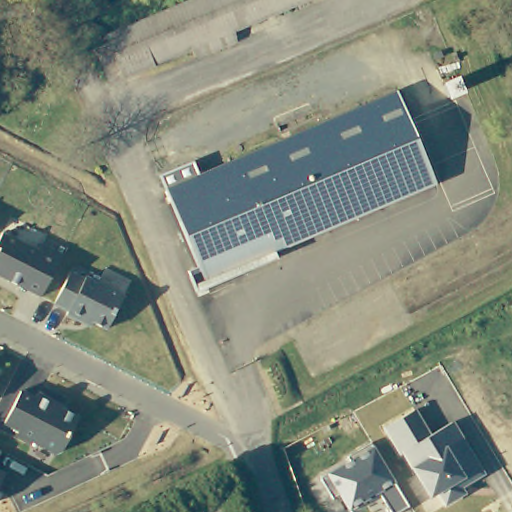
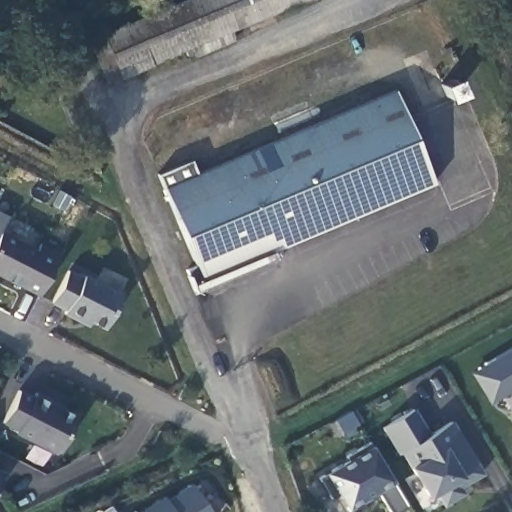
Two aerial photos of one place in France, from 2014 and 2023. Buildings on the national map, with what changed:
unchanged [(230,44),(192,60),(189,52),(104,87),(90,52),(102,47),(99,39),(193,0),(315,0),(227,36),(230,44)]
unchanged [(202,281),(164,189),(397,92),(436,183),(202,281)]
unchanged [(5,275),(0,273),(0,234),(1,232),(38,250),(42,244),(61,253),(40,295),(4,277),(5,275)]
unchanged [(69,270),(84,277),(85,275),(122,294),(106,328),(83,316),(81,321),(66,313),(67,309),(53,302),(69,270)]
new [(490,402),(472,371),(512,346),(512,391),(490,402)]
unchanged [(39,391),(64,404),(62,407),(79,416),(61,452),(56,454),(16,434),(19,430),(5,423),(22,390),(36,396),(39,391)]
unchanged [(466,484),(462,477),(456,481),(463,494),(445,506),(437,493),(430,497),(402,453),(400,455),(383,429),(413,411),(429,436),(451,423),(482,474),(466,484)]
unchanged [(398,512),(391,512),(380,491),(350,510),(340,492),(332,497),(320,477),(327,472),(352,459),(349,455),(370,442),(373,447),(395,481),(409,505),(398,512)]
unchanged [(0,480),(0,469),(5,471),(0,480)]
new [(164,497),(168,502),(192,486),(210,512),(142,512),(164,497)]
demolished [(215,511),(209,501),(217,497),(223,512),(213,512),(215,511)]

